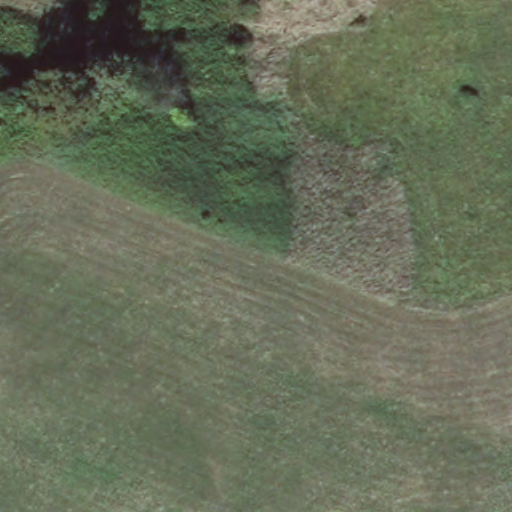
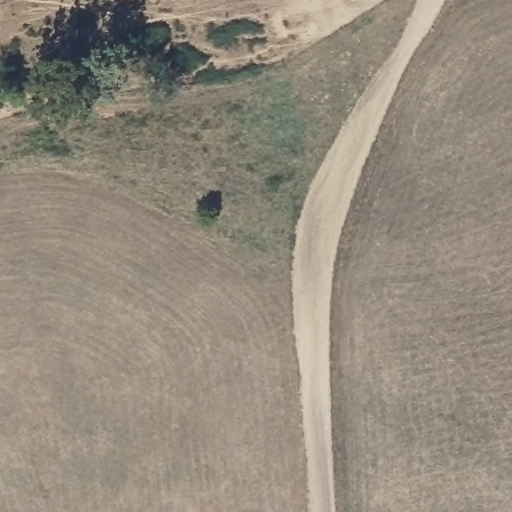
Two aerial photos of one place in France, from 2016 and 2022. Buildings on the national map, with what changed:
unchanged [(336,5),(305,14),(301,0),(334,0),(336,5)]

